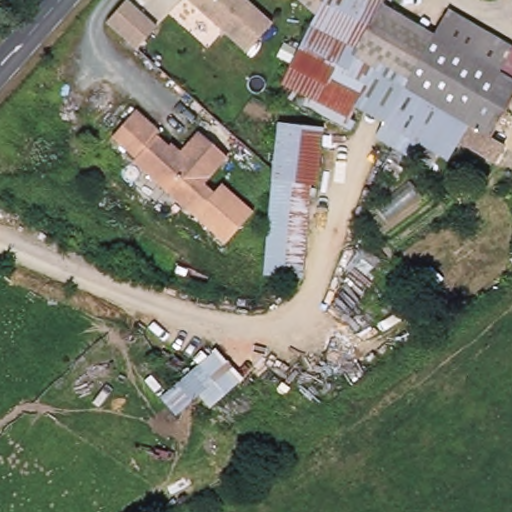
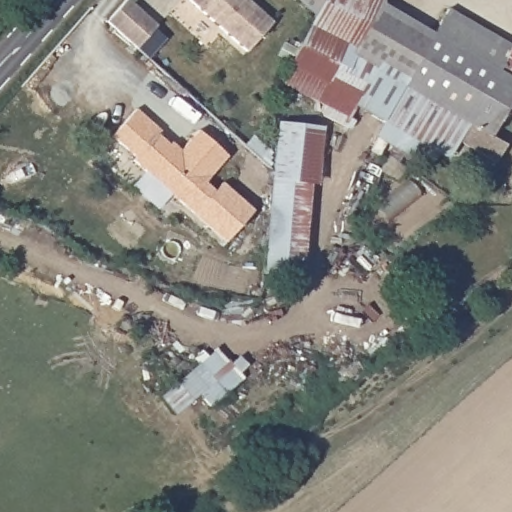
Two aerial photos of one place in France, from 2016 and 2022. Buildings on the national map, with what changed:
unchanged [(126,0),(128,0),(156,26),(135,48),(106,22),(126,0)]
unchanged [(248,55),(186,0),(245,0),(274,26),(248,55)]
unchanged [(356,124),(353,128),(282,84),(318,14),(326,0),(385,0),(359,53),(370,60),(365,69),(380,77),(403,89),(384,124),(362,113),(358,119),(356,124)]
unchanged [(326,0),(318,14),(316,19),(297,0),(326,0)]
unchanged [(434,35),(403,89),(365,69),(370,60),(359,53),(383,4),(434,35)]
unchanged [(443,139),(434,153),(420,145),(411,159),(393,149),(401,134),(384,124),(403,89),(450,9),(511,44),(497,68),(512,76),(512,87),(488,131),(503,139),(492,159),(467,145),(466,144),(462,142),(449,160),(435,153),(443,139)]
unchanged [(512,44),(512,76),(497,68),(511,44),(512,44)]
unchanged [(226,242),(113,136),(137,110),(182,150),(199,131),(228,158),(206,180),(216,190),(222,183),(256,210),(226,242)]
unchanged [(278,122),(323,126),(318,187),(312,187),(304,279),(265,277),(278,122)]
unchanged [(161,398),(216,349),(243,378),(211,408),(199,395),(176,416),(161,398)]

